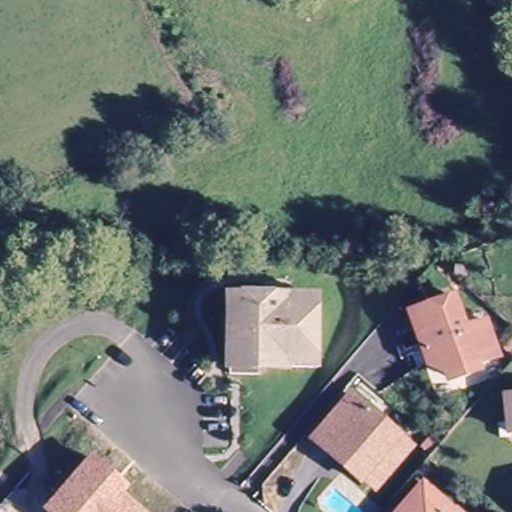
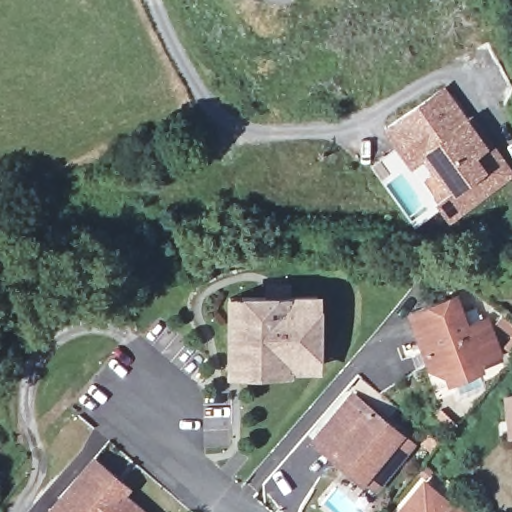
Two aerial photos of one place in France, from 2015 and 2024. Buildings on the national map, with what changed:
new [(445,86),(467,118),(472,114),(512,171),(512,179),(448,225),(432,202),(409,169),(381,128),(445,86)]
unchanged [(479,381),(433,397),(411,336),(442,325),(434,305),(461,295),(472,326),(493,318),(502,345),(482,352),(485,363),(479,381)]
unchanged [(225,377),(226,330),(226,311),(238,311),(263,311),(263,299),(284,300),(284,311),(314,310),(314,369),(314,380),(285,380),(285,377),(225,377)]
unchanged [(366,475),(335,450),(332,455),(314,438),(353,393),(401,435),(366,475)]
unchanged [(506,399),(512,398),(512,437),(508,437),(506,399)]
unchanged [(335,450),(366,475),(401,435),(411,444),(372,490),(332,455),(335,450)]
unchanged [(91,453),(131,487),(125,495),(147,512),(45,512),(44,511),(91,453)]
unchanged [(422,483),(455,512),(398,512),(422,483)]

